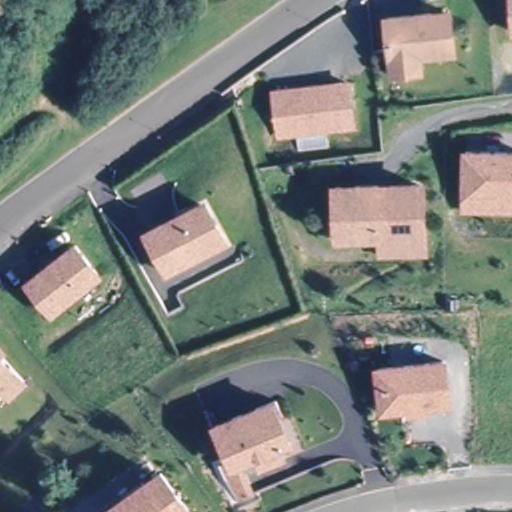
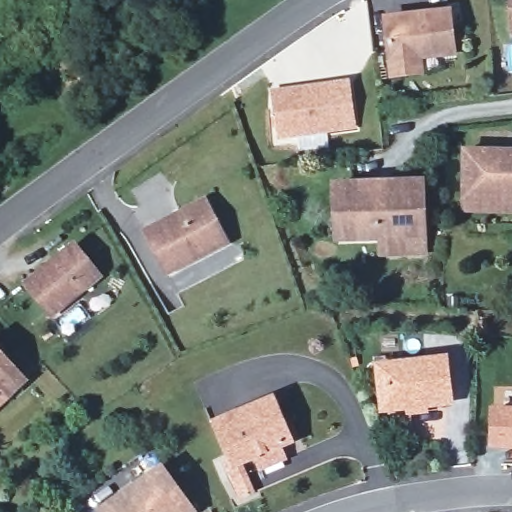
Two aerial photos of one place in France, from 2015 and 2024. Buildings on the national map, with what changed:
unchanged [(388,77),(387,63),(382,21),(445,14),(447,56),(415,61),(416,74),(388,77)]
unchanged [(348,125),(276,133),(273,89),(344,82),(348,125)]
unchanged [(466,197),(468,155),(512,156),(512,213),(468,212),(466,197)]
unchanged [(382,248),(382,234),(337,235),(335,181),(420,179),(421,232),(421,248),(382,248)]
unchanged [(225,245),(168,273),(146,234),(205,205),(225,245)]
unchanged [(97,280),(49,317),(27,287),(74,248),(97,280)]
unchanged [(23,379),(9,393),(0,385),(0,356),(23,379)]
unchanged [(379,388),(377,369),(444,362),(449,406),(389,412),(382,413),(379,388)]
unchanged [(254,471),(251,459),(227,468),(212,426),(268,402),(285,444),(273,449),(277,462),(254,471)]
new [(512,450),(491,451),(491,408),(512,408),(512,450)]
unchanged [(104,512),(103,510),(163,470),(191,512),(104,512)]
unchanged [(247,499),(236,504),(226,484),(240,479),(247,499)]

